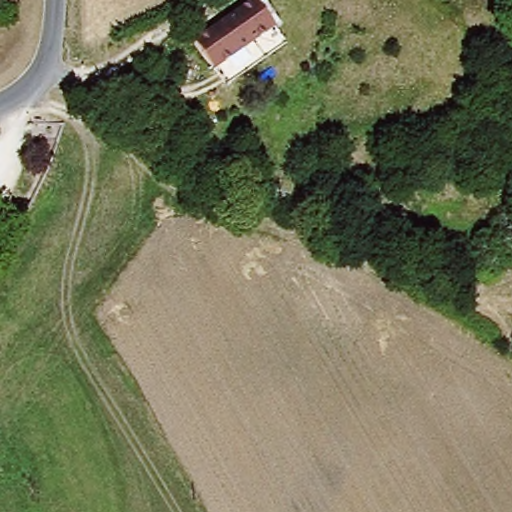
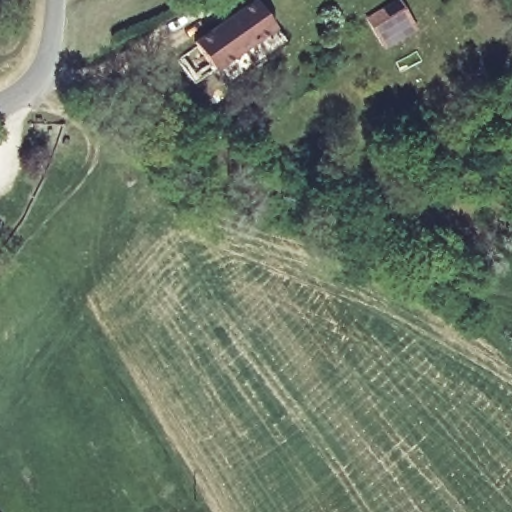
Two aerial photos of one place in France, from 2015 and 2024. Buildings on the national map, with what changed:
unchanged [(243,0),(256,0),(282,36),(223,77),(190,37),(243,0)]
new [(397,0),(400,0),(418,30),(398,41),(396,37),(394,39),(396,42),(383,50),(365,19),(397,0)]

